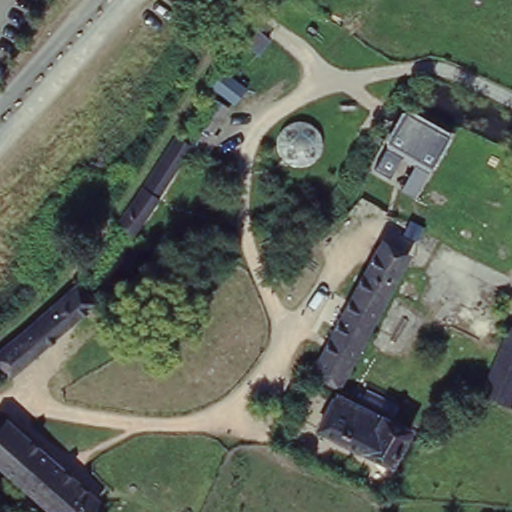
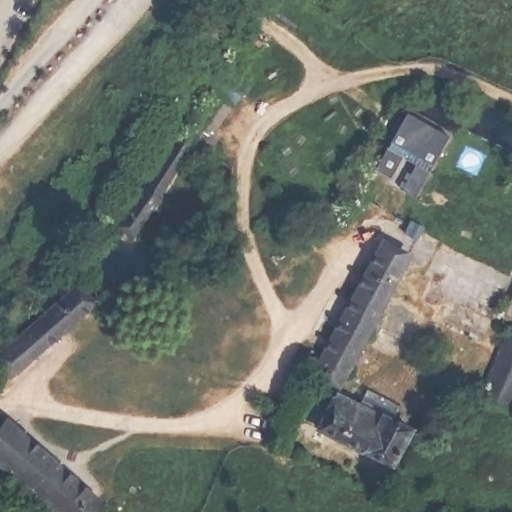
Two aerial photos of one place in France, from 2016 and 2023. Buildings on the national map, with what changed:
unchanged [(431,170),(429,168),(416,196),(402,187),(415,164),(401,156),(390,177),(375,169),(388,146),(385,144),(406,107),(452,131),(431,170)]
unchanged [(315,161),(303,164),(290,163),(282,156),(277,144),(280,133),(288,125),(298,122),(312,125),(321,133),(323,143),(315,161)]
unchanged [(195,141),(154,206),(151,219),(134,238),(118,225),(149,179),(182,135),(195,141)]
unchanged [(403,245),(342,380),(317,368),(376,233),(403,245)]
unchanged [(73,278),(95,298),(13,377),(0,363),(0,351),(73,278)]
unchanged [(479,383),(512,331),(512,388),(506,398),(479,383)]
unchanged [(410,424),(396,455),(323,423),(337,393),(410,424)]
unchanged [(89,496),(73,512),(53,512),(0,459),(0,429),(11,419),(89,496)]

